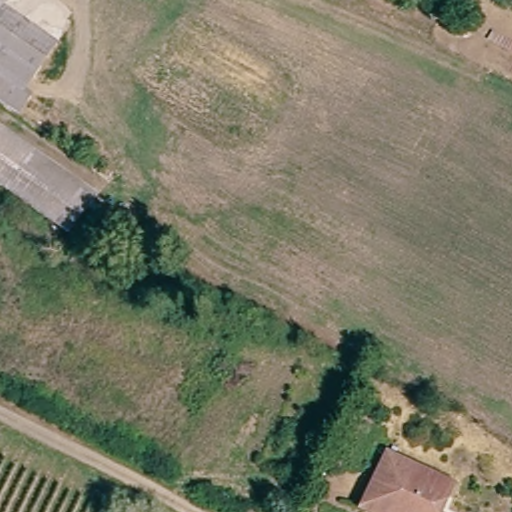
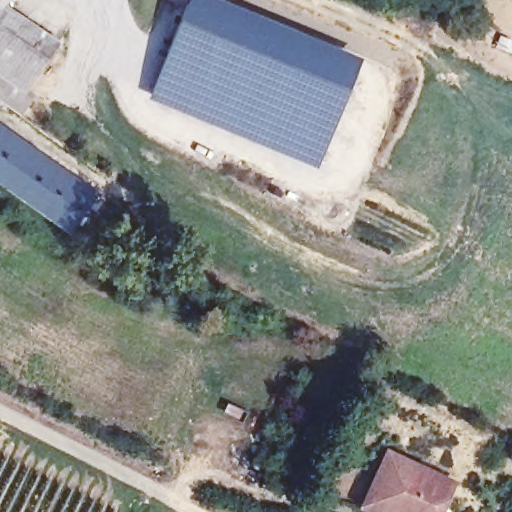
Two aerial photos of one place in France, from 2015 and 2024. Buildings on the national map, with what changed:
unchanged [(59,40),(11,104),(0,97),(0,0),(4,0),(59,40)]
new [(148,99),(189,0),(223,0),(363,57),(316,169),(148,99)]
unchanged [(97,196),(74,231),(0,178),(0,126),(97,196)]
unchanged [(392,450),(452,479),(438,512),(393,512),(368,500),(392,450)]

